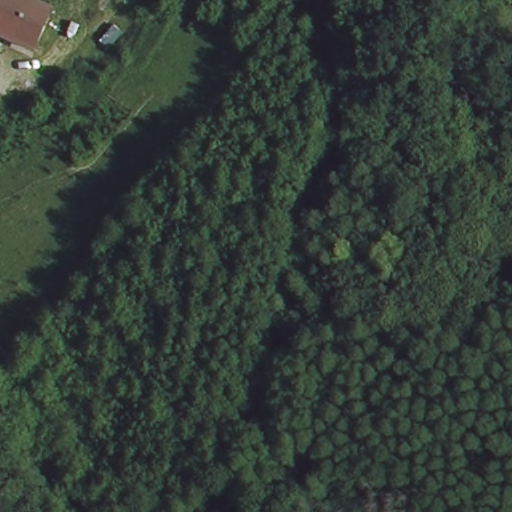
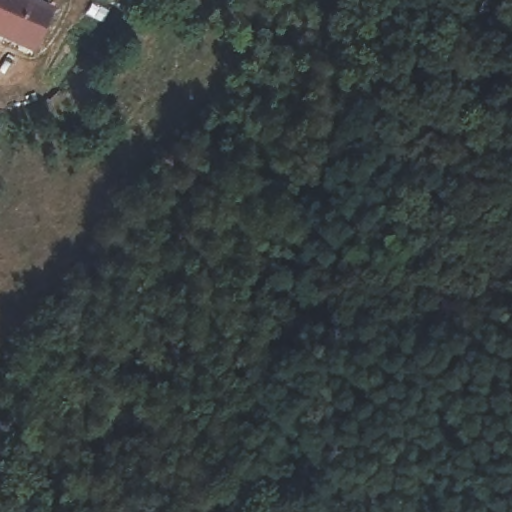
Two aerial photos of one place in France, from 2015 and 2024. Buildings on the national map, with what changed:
unchanged [(26,0),(52,10),(32,56),(0,43),(0,0),(26,0)]

